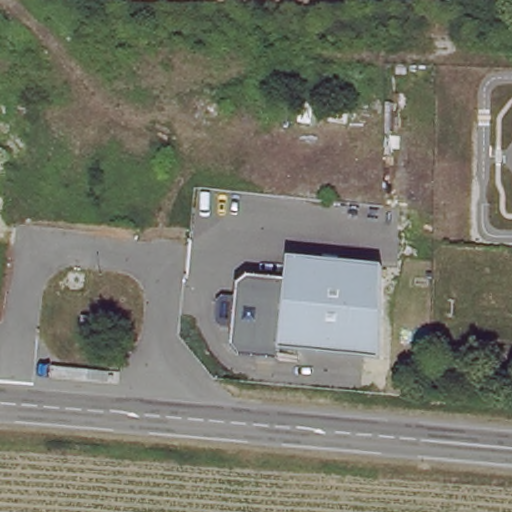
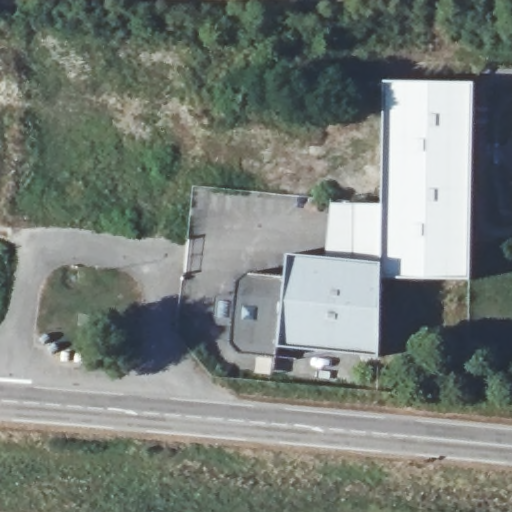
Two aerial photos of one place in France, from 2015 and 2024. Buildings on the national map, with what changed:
new [(472,88),(469,280),(377,278),(378,267),(382,86),(472,88)]
unchanged [(377,278),(374,359),(275,351),(274,361),(236,357),(228,347),(234,285),(244,276),(283,279),(285,257),(378,267),(377,278)]
unchanged [(97,320),(96,330),(77,328),(78,318),(97,320)]

